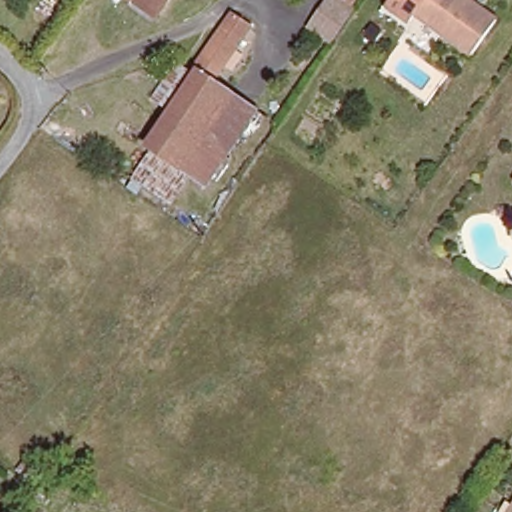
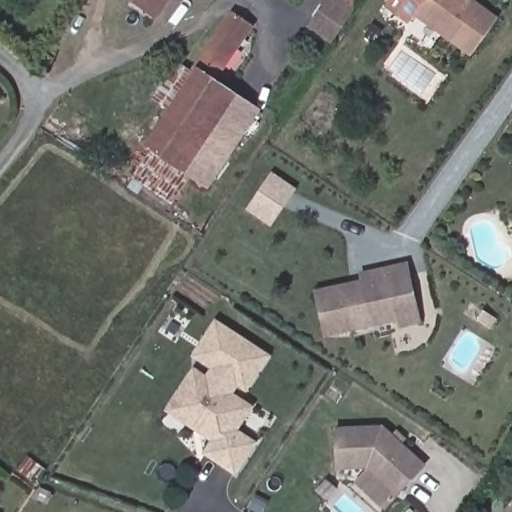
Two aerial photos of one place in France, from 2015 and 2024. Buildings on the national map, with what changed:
unchanged [(169,0),(160,12),(157,15),(134,0),(169,0)]
new [(328,0),(340,0),(355,10),(348,20),(338,35),(332,44),(310,28),(315,19),(325,4),(328,0)]
unchanged [(470,54),(417,14),(409,24),(386,6),(391,0),(471,0),(495,18),(470,54)]
unchanged [(197,71),(194,68),(233,11),(252,25),(214,82),(197,71)]
unchanged [(197,71),(214,82),(260,114),(209,188),(145,144),(197,71)]
new [(271,173),(296,189),(271,227),(246,209),(271,173)]
new [(359,273),(409,263),(420,317),(422,323),(400,328),(399,321),(325,338),(315,290),(360,279),(359,273)]
new [(257,443),(237,475),(202,454),(210,442),(165,412),(194,367),(207,375),(210,369),(191,357),(216,319),(271,356),(246,393),(237,387),(234,393),(254,407),(239,431),(257,443)]
new [(383,425),(425,463),(399,496),(385,511),(355,484),(368,469),(335,470),(333,427),(383,425)]
unchanged [(512,507),(512,512),(509,512),(512,507)]

